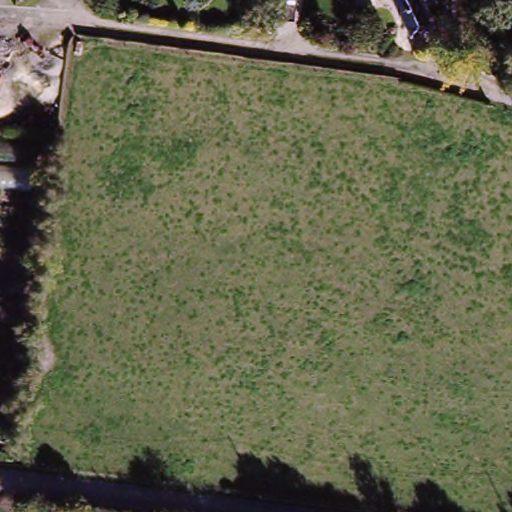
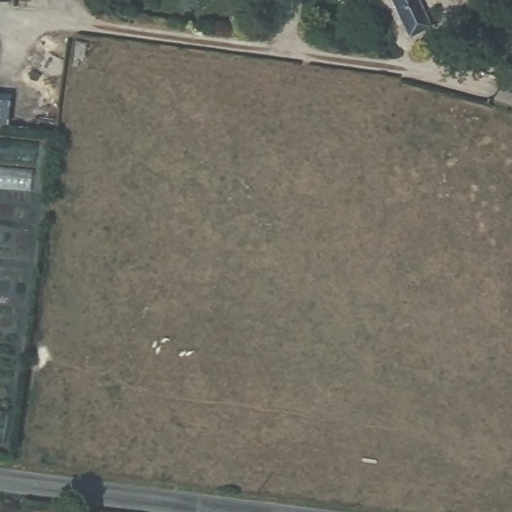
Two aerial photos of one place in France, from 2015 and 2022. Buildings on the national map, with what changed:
unchanged [(417,38),(399,0),(421,0),(435,30),(417,38)]
unchanged [(40,150),(37,165),(0,161),(0,145),(40,150)]
unchanged [(35,174),(35,194),(0,191),(0,170),(35,174)]
unchanged [(17,411),(15,437),(0,435),(0,409),(17,411)]

